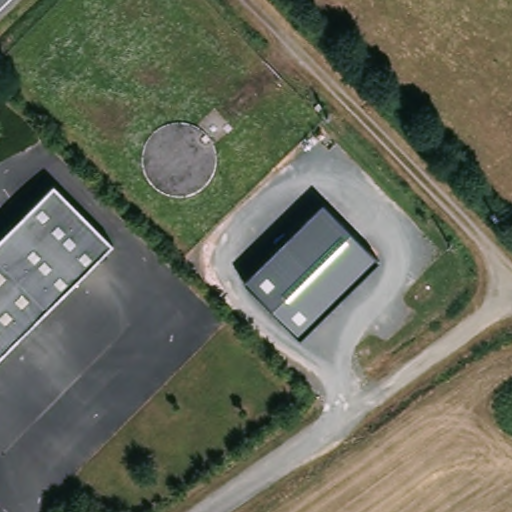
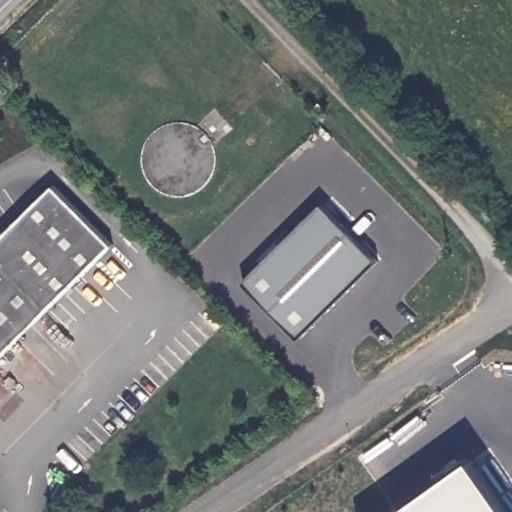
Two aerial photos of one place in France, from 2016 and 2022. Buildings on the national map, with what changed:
unchanged [(111,241),(0,354),(0,234),(51,182),(111,241)]
unchanged [(381,258),(297,333),(247,274),(326,194),(381,258)]
new [(473,458),(511,512),(398,512),(473,458)]

